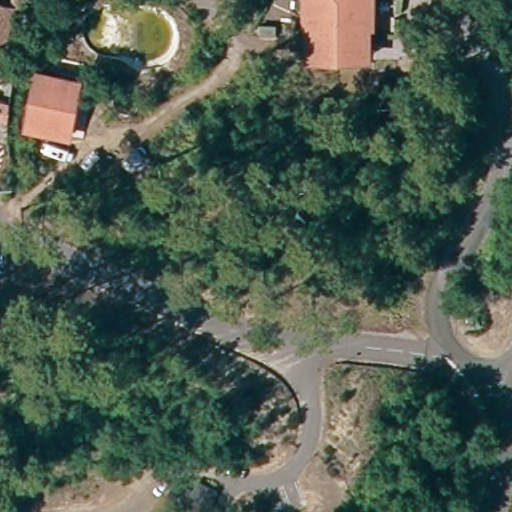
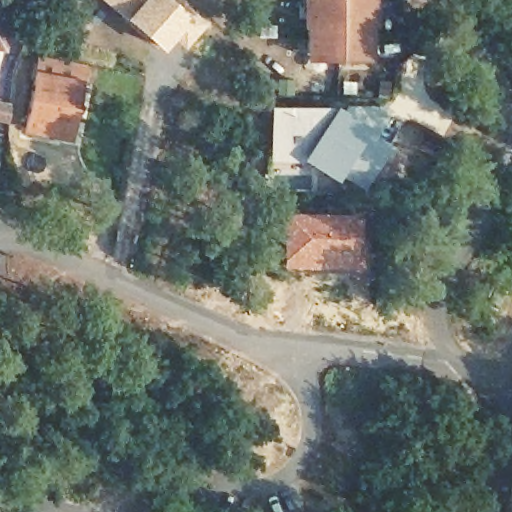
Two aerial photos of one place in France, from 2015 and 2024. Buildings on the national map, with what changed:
unchanged [(0,14),(0,0),(2,1),(0,14)]
new [(102,0),(134,0),(121,16),(102,0)]
new [(172,0),(141,34),(121,16),(134,0),(172,0)]
new [(173,0),(192,18),(161,51),(141,34),(172,0),(173,0)]
unchanged [(312,16),(307,16),(307,0),(375,0),(375,16),(370,16),(370,45),(370,50),(312,50),(312,45),(312,16)]
unchanged [(61,140),(55,139),(19,134),(26,81),(62,86),(69,86),(61,140)]
new [(338,175),(333,181),(302,161),(268,160),(268,107),(336,106),(343,110),(346,104),(381,106),(389,111),(372,135),(390,147),(361,190),(338,175)]
new [(278,211),(365,214),(364,270),(278,268),(278,211)]
unchanged [(191,512),(172,512),(180,499),(194,507),(191,512)]
unchanged [(214,512),(196,512),(201,499),(217,506),(214,512)]

